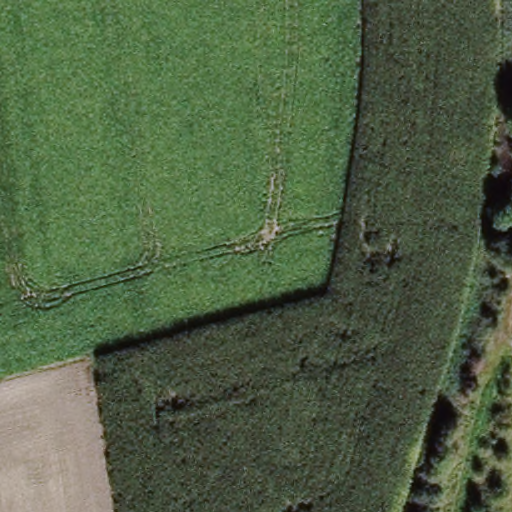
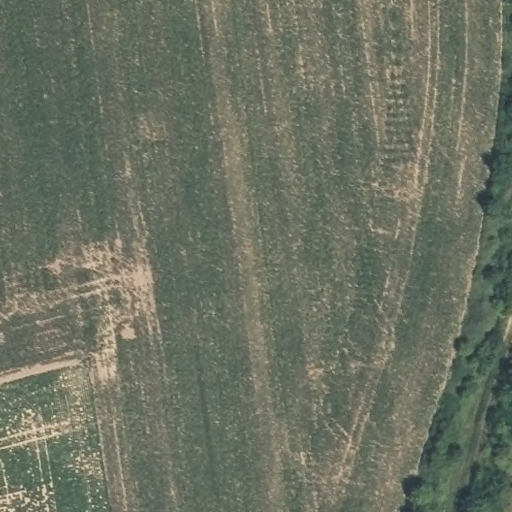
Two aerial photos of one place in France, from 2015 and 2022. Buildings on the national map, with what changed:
[]

